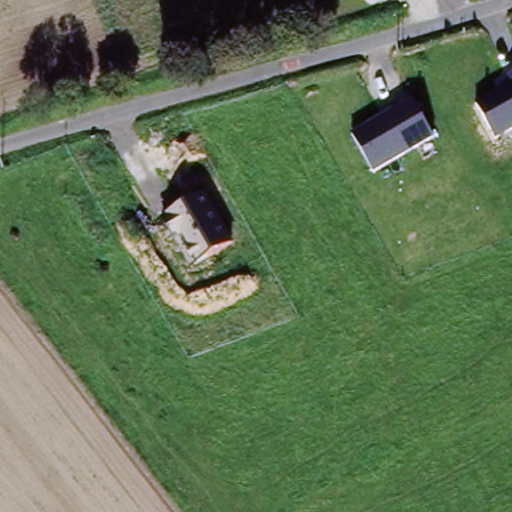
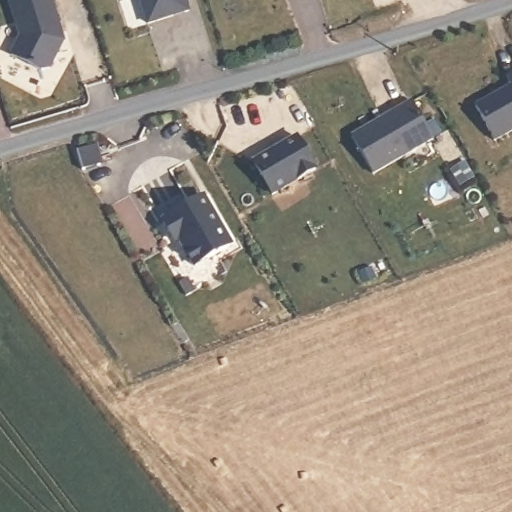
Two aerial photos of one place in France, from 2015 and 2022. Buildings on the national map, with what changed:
new [(20,37),(8,0),(54,0),(66,41),(50,73),(10,56),(20,37)]
new [(195,9),(155,24),(146,0),(192,0),(195,9)]
unchanged [(507,77),(512,75),(512,130),(496,138),(476,103),(510,84),(507,77)]
unchanged [(411,100),(433,138),(374,171),(355,132),(411,100)]
new [(297,143),(315,175),(272,200),(253,168),(297,143)]
unchanged [(202,192),(232,245),(194,264),(162,215),(202,192)]

